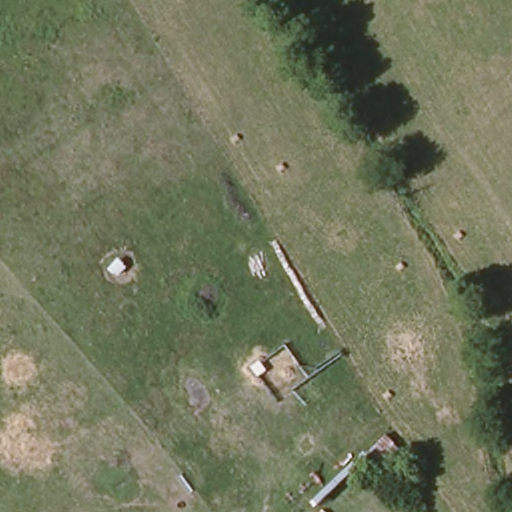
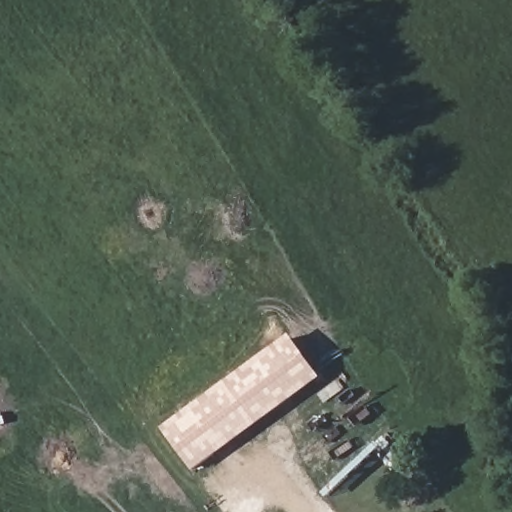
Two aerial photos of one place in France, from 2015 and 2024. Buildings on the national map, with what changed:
new [(194,472),(162,429),(290,336),(321,379),(194,472)]

